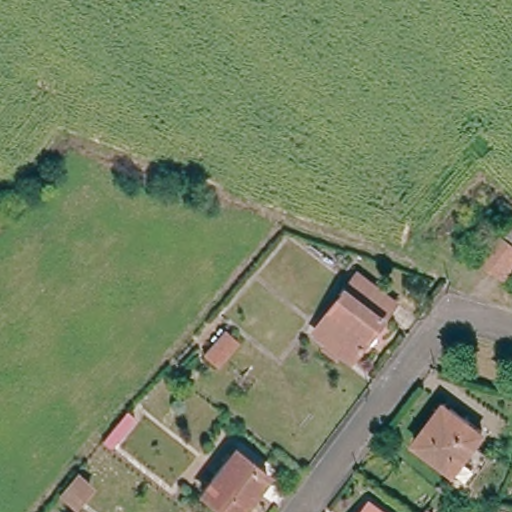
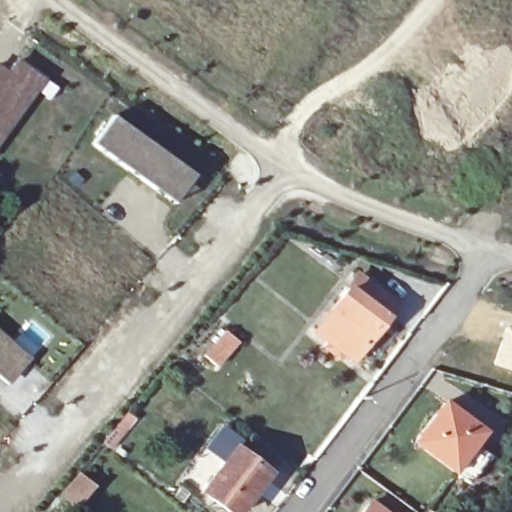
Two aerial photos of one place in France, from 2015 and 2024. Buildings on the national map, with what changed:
new [(17,58),(58,86),(48,100),(38,93),(0,148),(0,66),(6,70),(17,58)]
new [(113,113),(194,174),(173,203),(91,143),(113,113)]
demolished [(499,280),(475,262),(493,237),(512,252),(512,263),(499,280)]
unchanged [(324,349),(329,342),(315,331),(359,275),(395,303),(353,359),(343,352),(338,359),(324,349)]
new [(506,325),(512,327),(512,372),(492,365),(506,325)]
unchanged [(238,342),(218,367),(203,354),(224,329),(238,342)]
new [(9,382),(0,375),(0,334),(29,360),(9,382)]
unchanged [(141,392),(150,400),(113,447),(104,440),(141,392)]
unchanged [(414,441),(444,402),(486,433),(477,444),(492,455),(471,484),(456,473),(414,441)]
unchanged [(238,512),(228,512),(200,492),(234,447),(268,472),(238,512)]
unchanged [(79,474),(91,485),(74,505),(62,495),(79,474)]
unchanged [(363,512),(371,501),(384,512),(363,512)]

